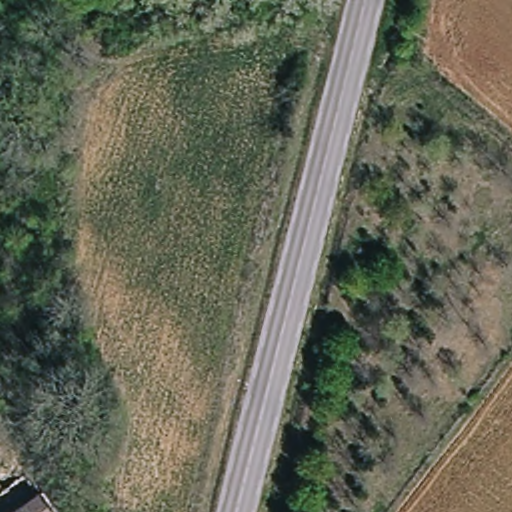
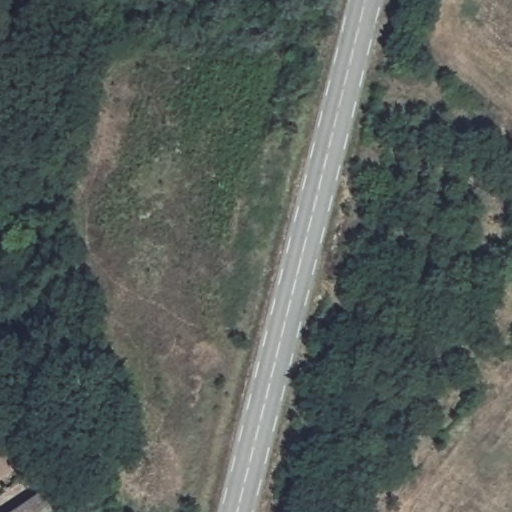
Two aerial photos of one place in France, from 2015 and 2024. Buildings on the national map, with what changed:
unchanged [(55,510),(53,512),(11,512),(36,490),(55,510)]

